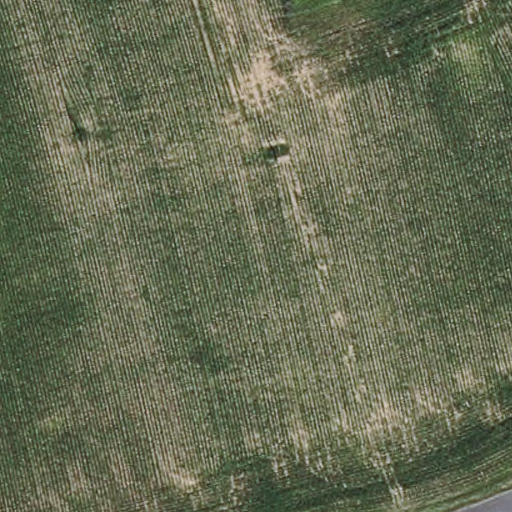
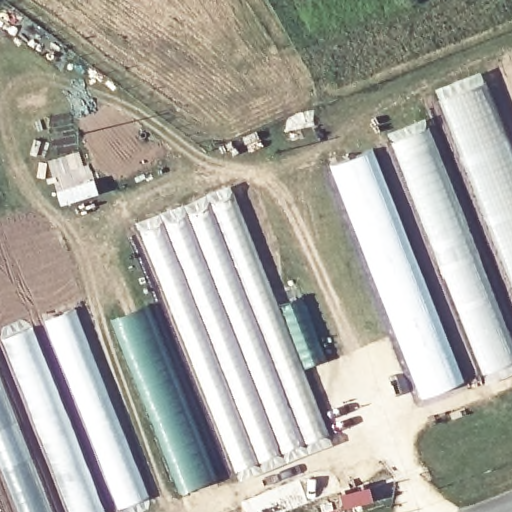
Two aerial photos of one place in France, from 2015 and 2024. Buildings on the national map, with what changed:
new [(506,128),(512,125),(512,296),(486,230),(433,88),(480,70),(506,128)]
new [(428,126),(460,205),(512,339),(512,365),(481,377),(442,288),(385,132),(425,117),(428,126)]
new [(372,147),(435,301),(465,382),(420,400),(392,331),(327,165),(372,147)]
new [(79,150),(84,164),(89,163),(100,193),(60,205),(47,160),(79,150)]
new [(230,185),(280,304),(305,369),(334,444),(251,476),(247,470),(234,475),(195,386),(133,223),(230,185)]
new [(302,297),(325,360),(305,369),(280,304),(302,297)]
new [(150,306),(173,379),(201,431),(220,479),(179,496),(155,440),(142,395),(126,364),(110,319),(150,306)]
new [(75,308),(150,498),(115,512),(106,496),(89,445),(41,321),(75,308)]
new [(370,486),(373,502),(342,509),(339,494),(370,486)]

